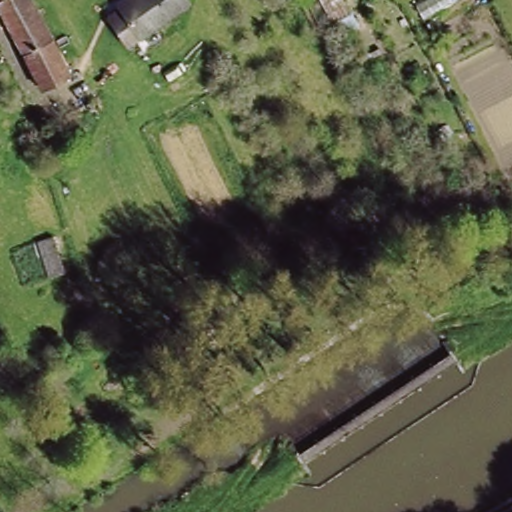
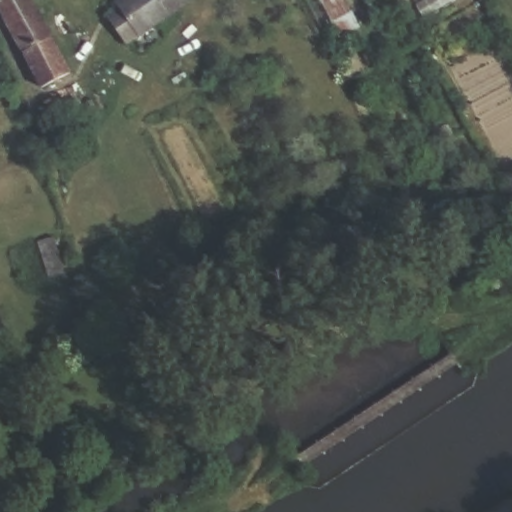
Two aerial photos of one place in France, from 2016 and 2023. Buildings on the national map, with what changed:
unchanged [(70,61),(72,67),(46,81),(43,75),(1,0),(35,0),(70,61)]
unchanged [(116,7),(113,3),(118,0),(188,0),(190,4),(138,37),(126,45),(104,13),(116,7)]
unchanged [(363,28),(347,41),(322,0),(348,0),(363,28)]
unchanged [(422,0),(450,0),(421,18),(412,6),(422,0)]
unchanged [(55,234),(66,272),(48,277),(38,239),(55,234)]

